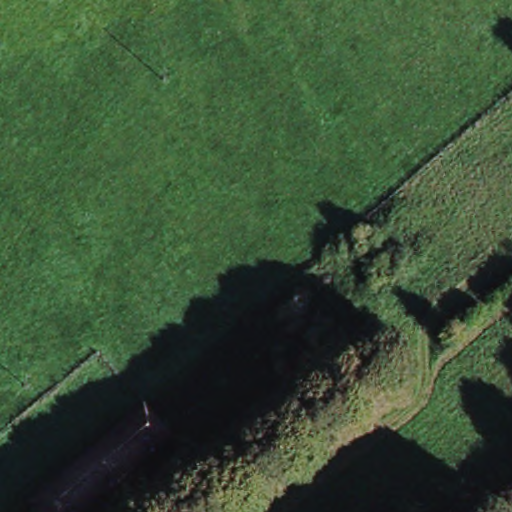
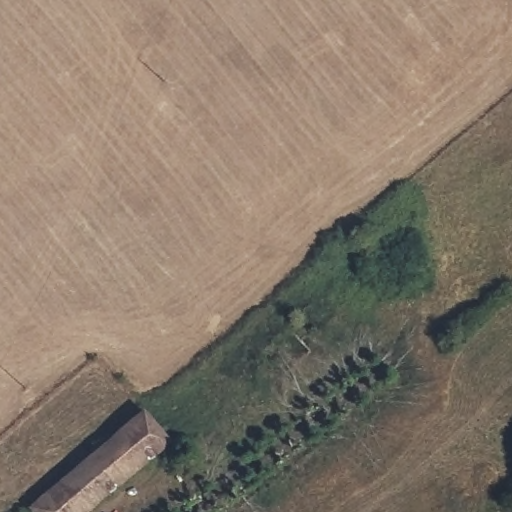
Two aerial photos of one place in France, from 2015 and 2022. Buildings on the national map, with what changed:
unchanged [(62,478),(142,409),(167,438),(81,512),(36,512),(30,506),(62,478)]

